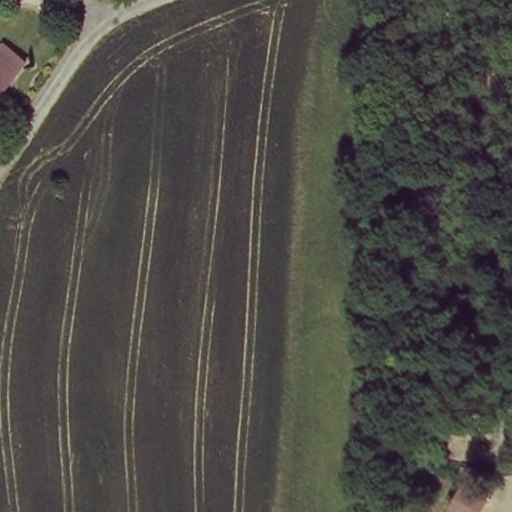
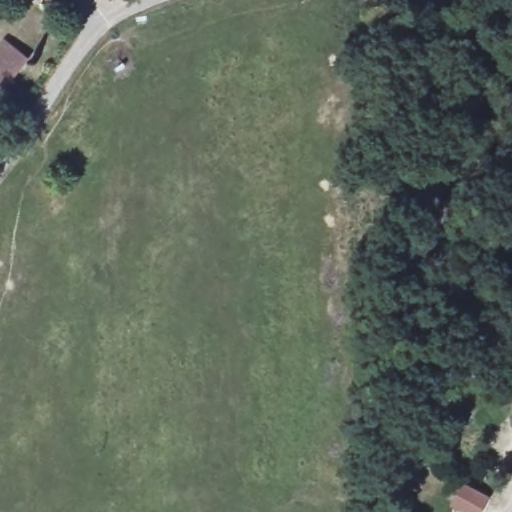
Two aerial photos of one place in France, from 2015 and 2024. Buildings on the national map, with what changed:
unchanged [(0,47),(0,46),(21,64),(0,95),(0,47)]
unchanged [(492,512),(466,512),(470,502),(493,511),(492,512)]

